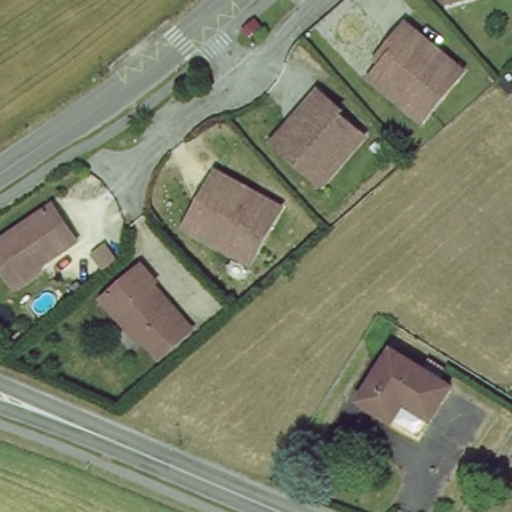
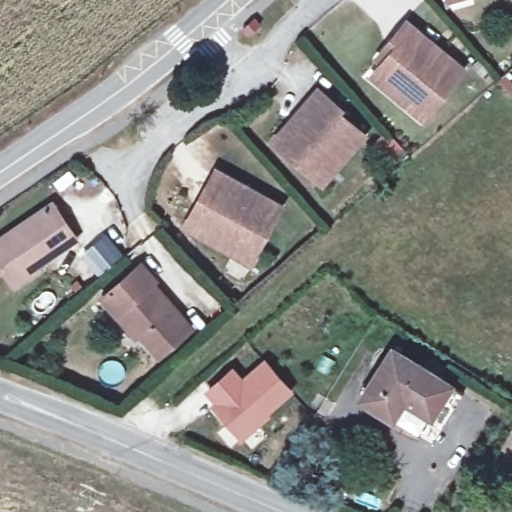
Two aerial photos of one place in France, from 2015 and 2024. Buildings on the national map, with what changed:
unchanged [(404,103),(370,74),(380,63),(372,56),(390,36),(402,22),(460,68),(427,109),(420,116),(404,103)]
unchanged [(288,119),(315,88),(341,110),(337,115),(362,136),(328,176),(312,167),(306,173),(276,149),(269,142),(288,119)]
unchanged [(210,196),(203,192),(214,173),(278,209),(252,255),(243,251),(238,260),(189,230),(210,196)]
unchanged [(0,243),(53,208),(76,244),(38,269),(35,266),(9,281),(0,267),(0,243)]
unchanged [(154,280),(150,284),(161,296),(155,300),(161,307),(167,302),(187,328),(157,353),(123,315),(117,319),(105,302),(145,268),(154,280)]
unchanged [(450,384),(420,432),(362,393),(396,345),(450,384)]
new [(234,365),(243,375),(265,356),(294,389),(270,412),(273,415),(242,441),(212,405),(214,403),(205,392),(234,365)]

